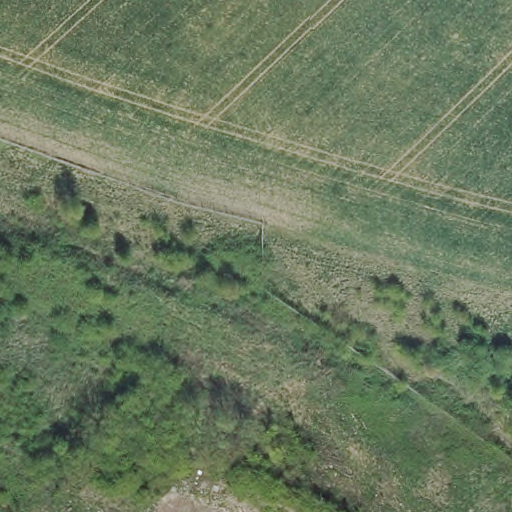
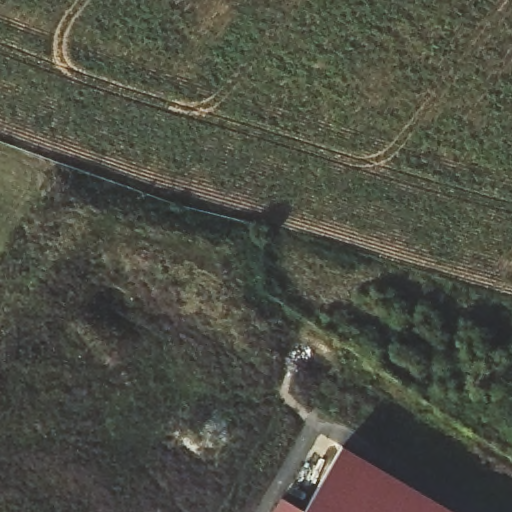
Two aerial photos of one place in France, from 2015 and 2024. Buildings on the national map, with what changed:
new [(342,447),(453,512),(304,512),(342,447)]
new [(281,499),(303,512),(274,512),(281,499)]

